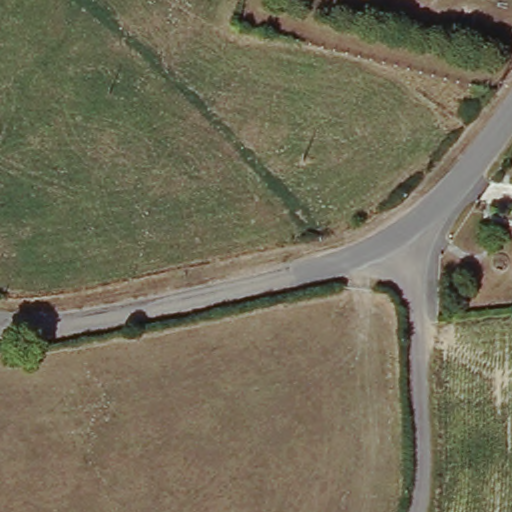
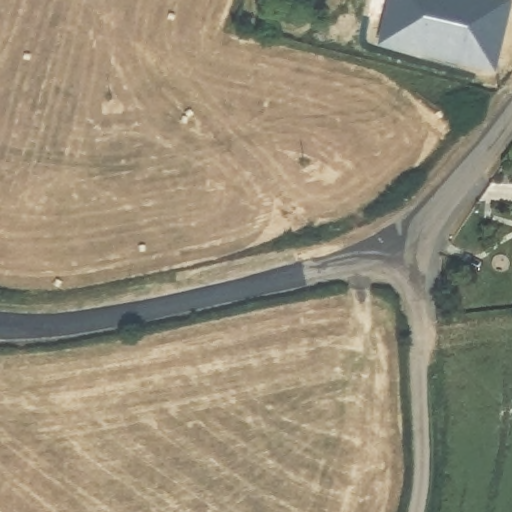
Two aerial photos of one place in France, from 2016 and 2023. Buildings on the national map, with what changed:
new [(377,44),(387,0),(510,0),(494,71),(377,44)]

